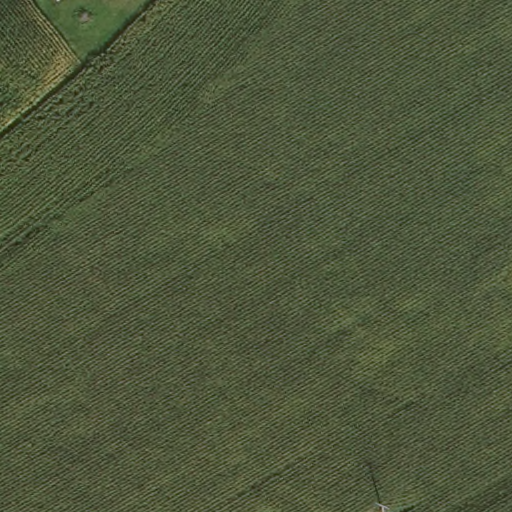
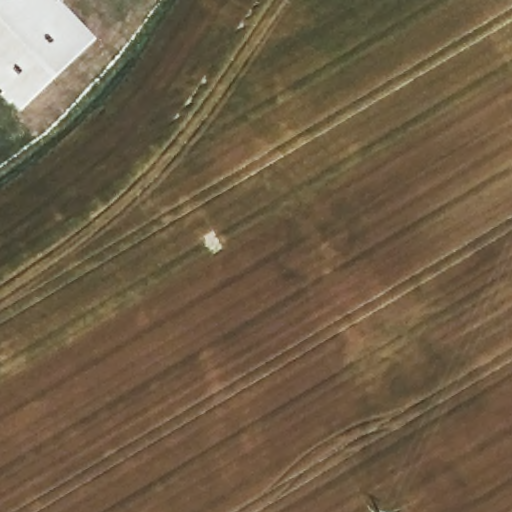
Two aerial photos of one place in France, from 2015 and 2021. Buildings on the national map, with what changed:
new [(95,40),(22,115),(0,91),(0,0),(57,0),(95,40)]

